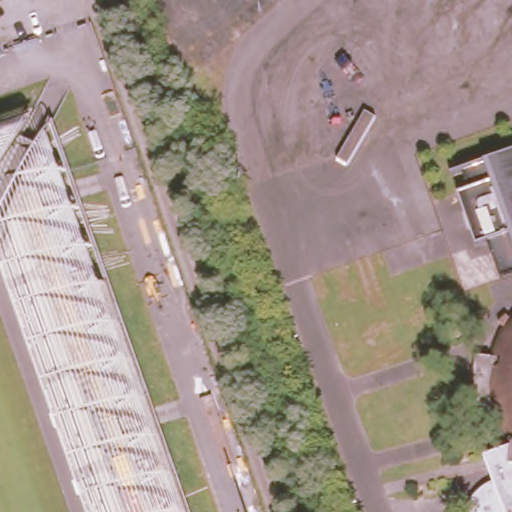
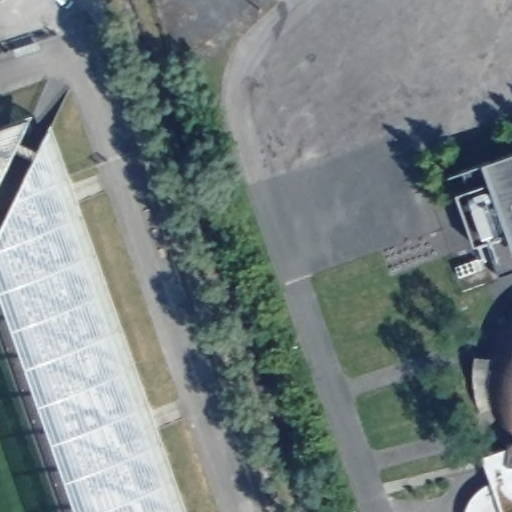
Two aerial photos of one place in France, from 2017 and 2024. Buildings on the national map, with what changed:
unchanged [(11,144),(0,148),(0,118),(28,108),(11,144)]
unchanged [(47,118),(186,512),(159,512),(30,154),(47,118)]
unchanged [(0,167),(0,148),(11,144),(0,167)]
unchanged [(503,267),(490,231),(478,235),(460,183),(472,179),(465,160),(512,144),(512,263),(503,267)]
unchanged [(0,214),(30,154),(159,512),(84,512),(0,273),(0,214)]
unchanged [(462,497),(470,487),(478,479),(490,474),(487,465),(511,457),(510,454),(500,442),(492,427),(488,412),(485,393),(485,374),(488,355),(494,341),(501,328),(510,316),(512,314),(512,512),(457,512),(457,510),(462,497)]

